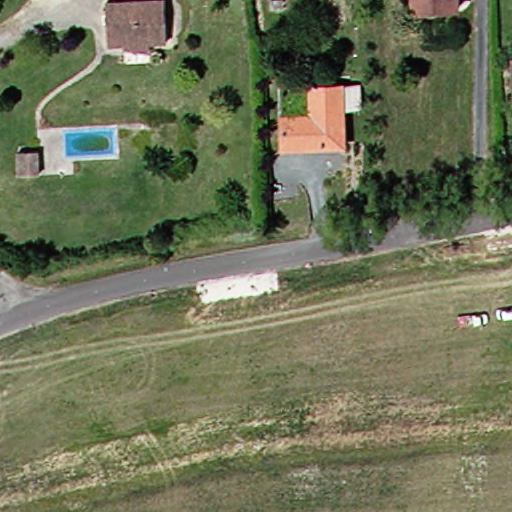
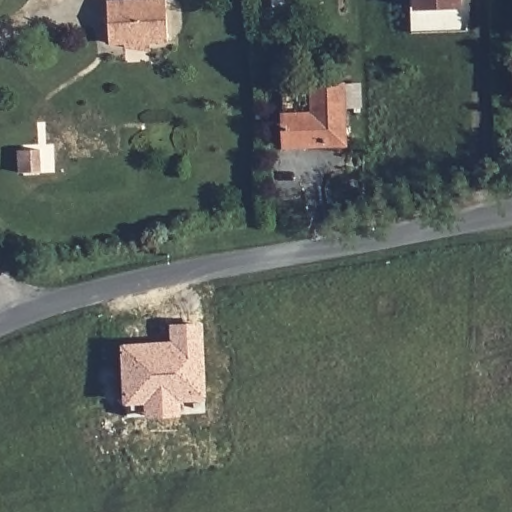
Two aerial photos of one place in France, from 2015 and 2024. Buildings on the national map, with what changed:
unchanged [(464,10),(423,11),(423,0),(464,0),(464,10)]
unchanged [(172,2),(174,44),(115,47),(113,7),(172,2)]
unchanged [(291,149),(290,119),(320,117),(320,87),(351,87),(351,89),(366,87),(368,109),(351,110),(352,147),(291,149)]
unchanged [(40,147),(42,170),(23,172),(21,149),(40,147)]
new [(208,401),(183,402),(183,415),(146,420),(146,404),(126,406),(120,345),(172,342),(171,325),(204,322),(208,401)]

